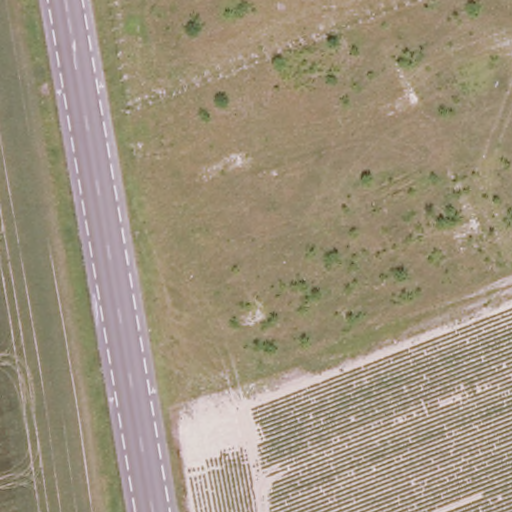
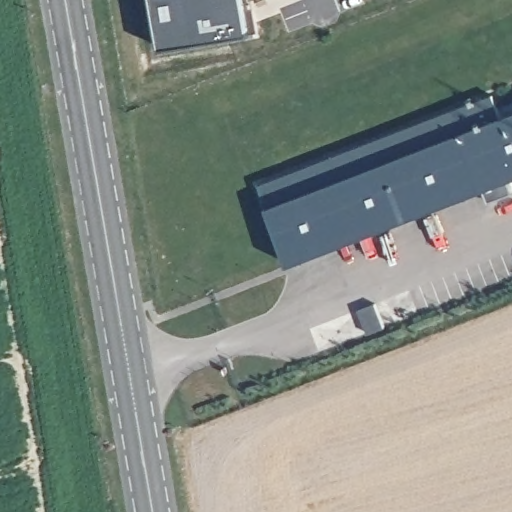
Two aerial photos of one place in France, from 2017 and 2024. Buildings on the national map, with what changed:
new [(167,50),(158,0),(252,0),(259,34),(167,50)]
new [(498,95),(508,118),(512,117),(512,194),(497,199),(495,188),(299,264),(267,187),(498,95)]

